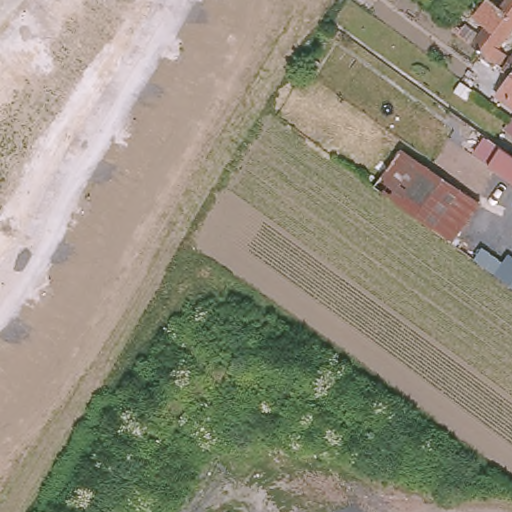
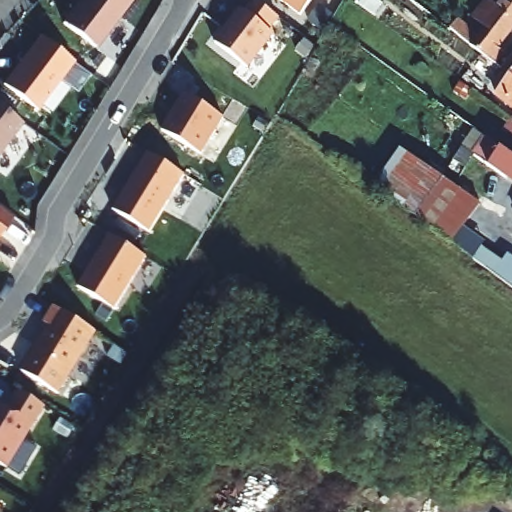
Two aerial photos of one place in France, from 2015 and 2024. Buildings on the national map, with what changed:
new [(80,0),(133,0),(97,47),(63,23),(80,0)]
new [(217,41),(240,10),(244,12),(254,0),(255,0),(280,18),(271,31),(275,35),(248,67),(217,41)]
new [(280,0),(310,0),(299,15),(280,0)]
unchanged [(498,54),(507,61),(499,72),(449,33),(453,28),(460,34),(463,29),(477,39),(483,31),(473,24),(487,4),(498,11),(507,0),(512,0),(512,37),(498,54)]
new [(40,35),(74,60),(37,110),(3,83),(40,35)]
unchanged [(498,99),(512,81),(505,75),(506,72),(512,65),(512,110),(498,99)]
new [(163,131),(185,95),(223,119),(202,155),(163,131)]
new [(0,107),(22,123),(0,153),(0,107)]
unchanged [(509,185),(468,155),(475,145),(454,130),(460,122),(489,142),(512,159),(512,180),(509,185)]
unchanged [(418,215),(417,216),(373,185),(400,148),(443,177),(418,215)]
new [(148,152),(184,175),(148,232),(112,209),(148,152)]
unchanged [(454,244),(417,216),(418,215),(443,177),(469,195),(482,204),(454,244)]
new [(0,207),(11,215),(0,233),(0,207)]
new [(108,235),(146,256),(112,310),(77,286),(108,235)]
unchanged [(503,266),(507,261),(512,265),(512,291),(475,263),(483,252),(503,266)]
new [(58,391),(22,370),(48,326),(42,323),(53,307),(95,332),(58,391)]
unchanged [(4,467),(0,465),(0,404),(31,423),(4,467)]

